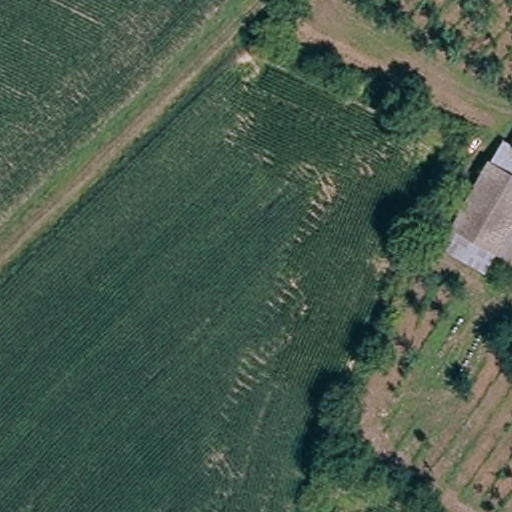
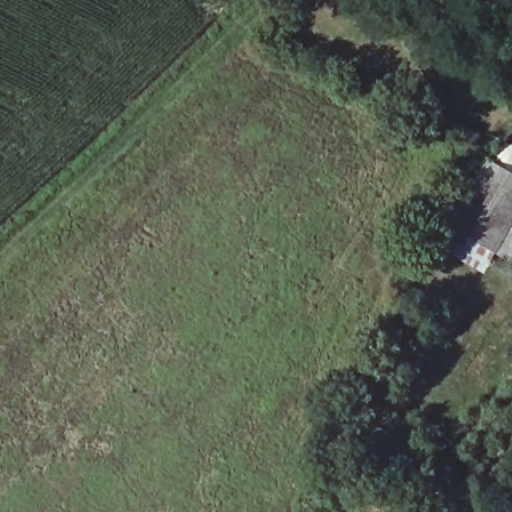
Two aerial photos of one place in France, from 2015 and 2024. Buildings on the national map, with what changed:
unchanged [(504,138),(512,143),(512,217),(494,248),(482,270),(443,245),(504,138)]
unchanged [(494,248),(512,217),(512,258),(494,248)]

